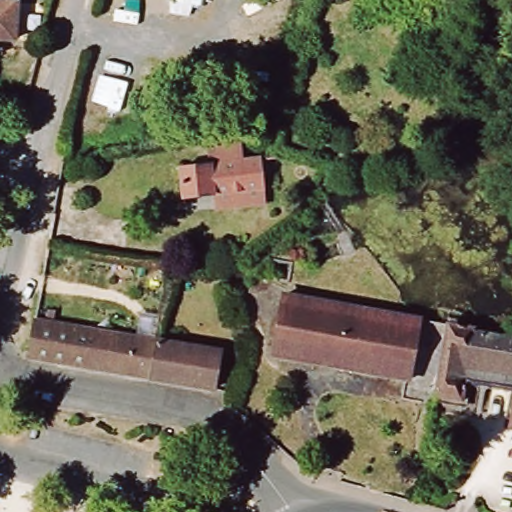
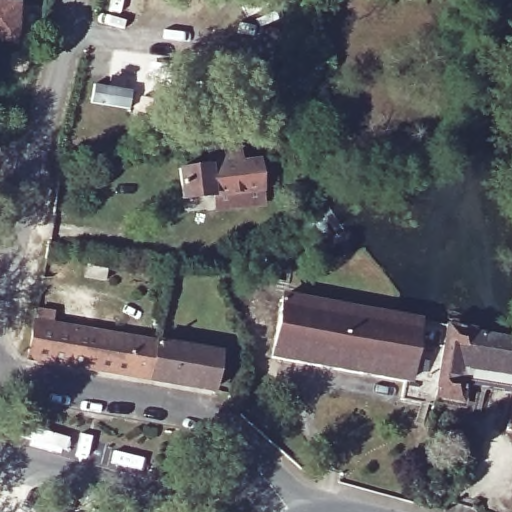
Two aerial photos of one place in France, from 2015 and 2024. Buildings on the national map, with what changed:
unchanged [(6,9),(23,10),(20,49),(0,47),(0,0),(6,0),(6,9)]
unchanged [(277,164),(280,194),(185,206),(182,176),(211,173),(209,156),(242,152),(244,167),(270,164),(277,164)]
unchanged [(403,385),(272,360),(284,292),(398,313),(417,317),(447,322),(434,398),(432,407),(400,401),(403,385)]
unchanged [(476,327),(476,328),(498,337),(512,341),(512,393),(463,387),(460,402),(434,398),(447,322),(476,327)]
unchanged [(100,377),(32,363),(39,327),(105,338),(100,377)]
unchanged [(33,352),(20,349),(24,328),(37,331),(33,352)]
unchanged [(159,348),(154,387),(100,377),(105,338),(159,348)]
unchanged [(217,399),(154,387),(159,348),(222,359),(217,399)]
unchanged [(512,396),(512,432),(506,430),(512,396)]
unchanged [(218,510),(217,512),(197,512),(198,506),(218,510)]

